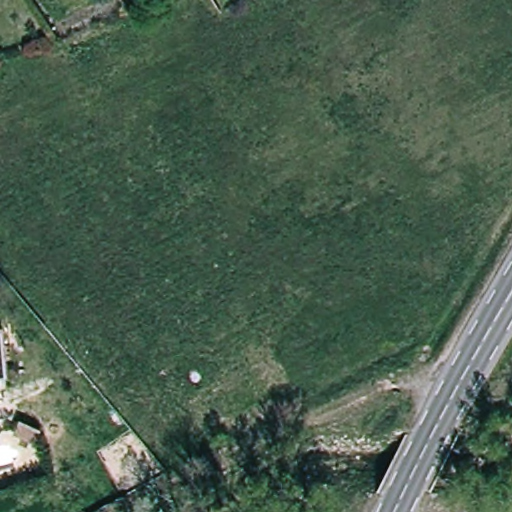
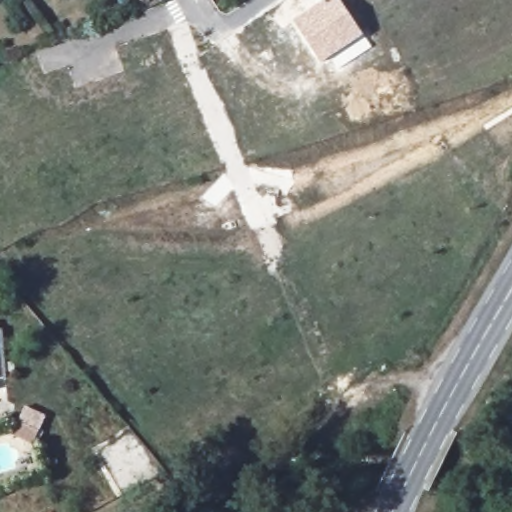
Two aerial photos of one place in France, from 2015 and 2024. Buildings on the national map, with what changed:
new [(293,21),(324,0),(325,0),(328,4),(333,0),(340,0),(363,34),(321,62),(293,21)]
unchanged [(36,412),(30,424),(13,417),(19,404),(36,412)]

